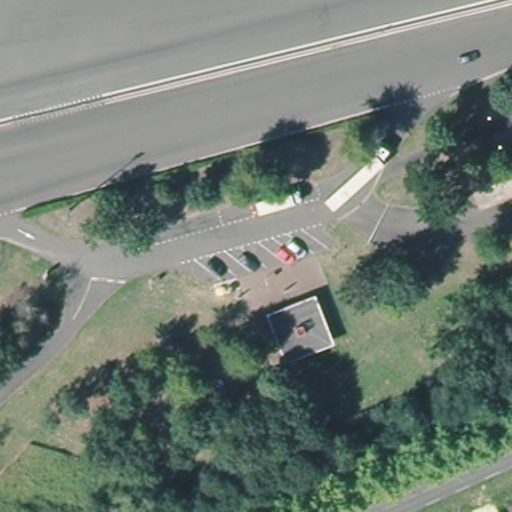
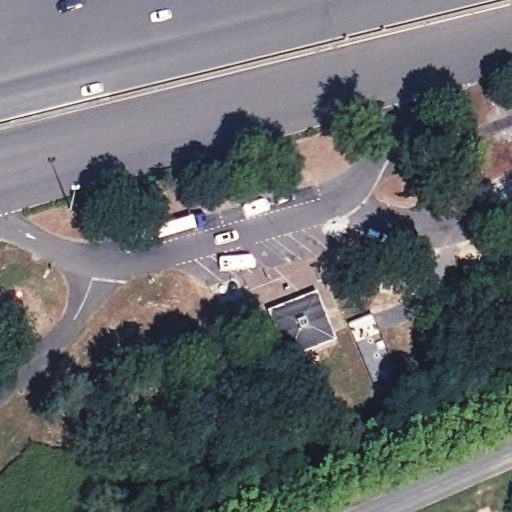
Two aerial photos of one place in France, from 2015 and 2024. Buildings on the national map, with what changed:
unchanged [(335,337),(291,358),(270,311),(317,292),(335,337)]

